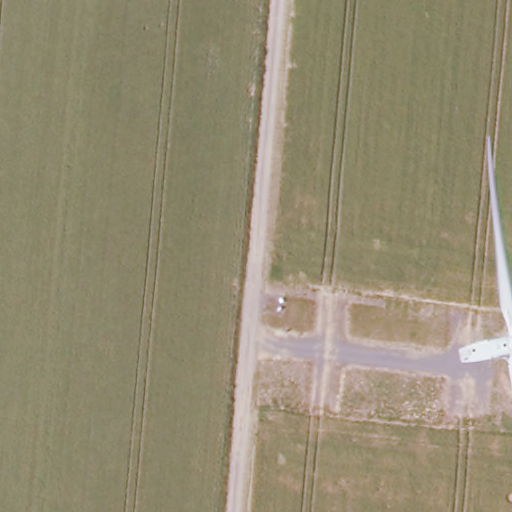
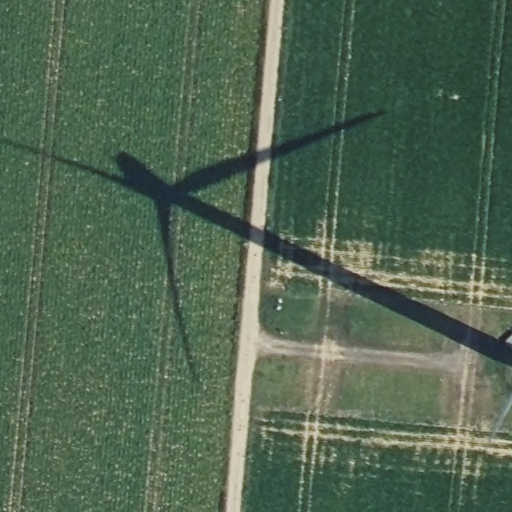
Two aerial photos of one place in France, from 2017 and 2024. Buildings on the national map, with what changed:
unchanged [(507,346),(512,342),(512,351),(507,346)]

